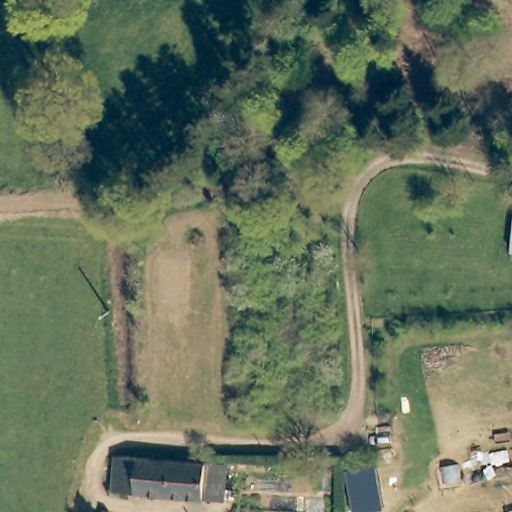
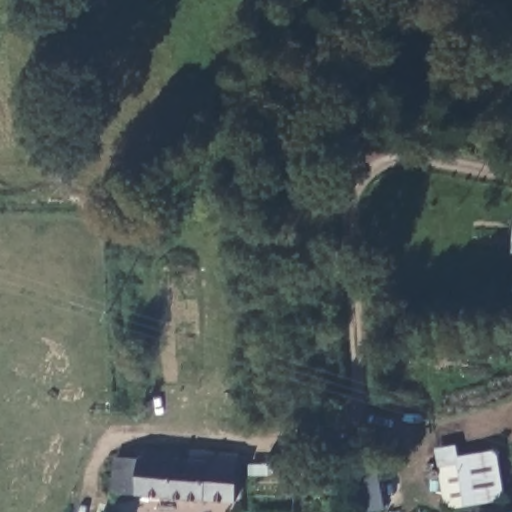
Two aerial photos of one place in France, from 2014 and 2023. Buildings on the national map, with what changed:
unchanged [(509,252),(512,230),(512,252),(509,252)]
new [(436,448),(457,445),(458,456),(497,450),(504,500),(445,509),(436,448)]
unchanged [(109,488),(113,453),(158,457),(200,462),(195,497),(109,488)]
unchanged [(229,465),(226,501),(195,497),(200,462),(219,464),(229,465)]
new [(358,512),(353,468),(378,463),(384,509),(362,512),(358,512)]

